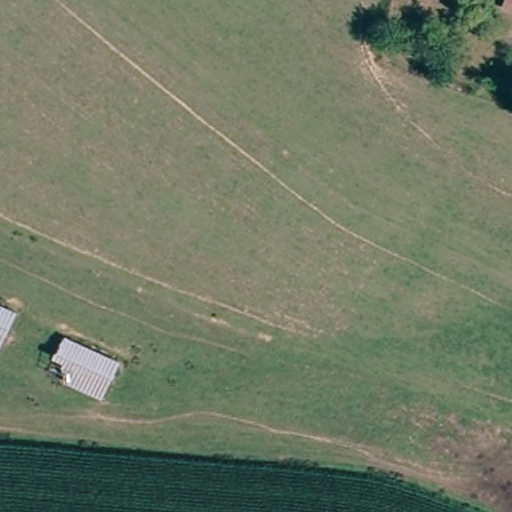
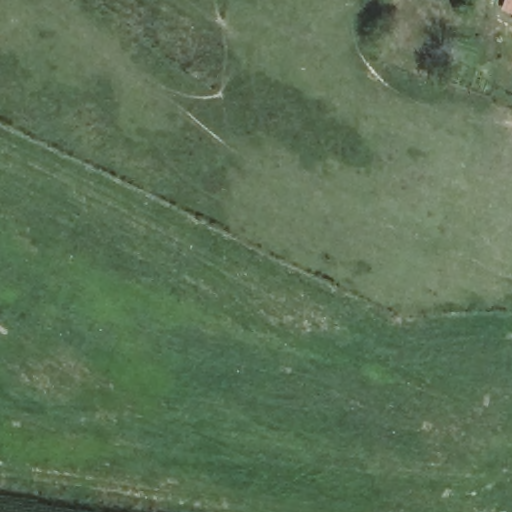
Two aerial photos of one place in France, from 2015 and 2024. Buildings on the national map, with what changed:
unchanged [(508,0),(512,0),(512,13),(504,10),(508,0)]
demolished [(0,344),(0,313),(12,319),(0,344)]
demolished [(61,342),(116,368),(100,402),(45,376),(61,342)]

